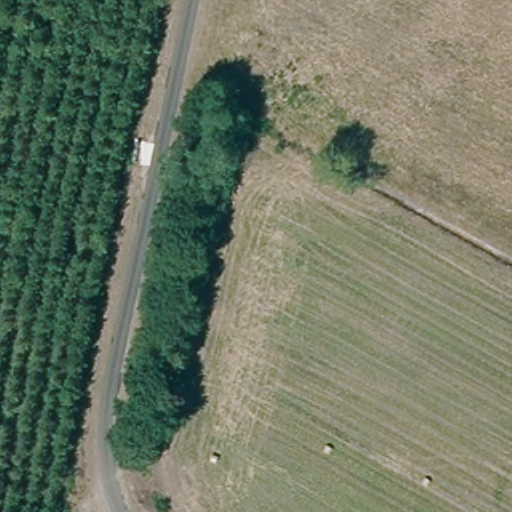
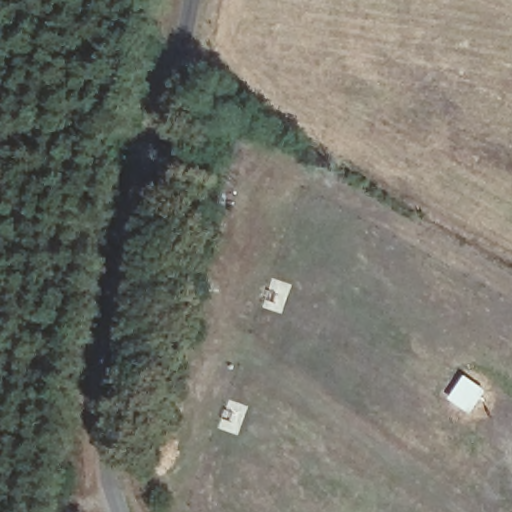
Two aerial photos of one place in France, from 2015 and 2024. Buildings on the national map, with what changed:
[]

